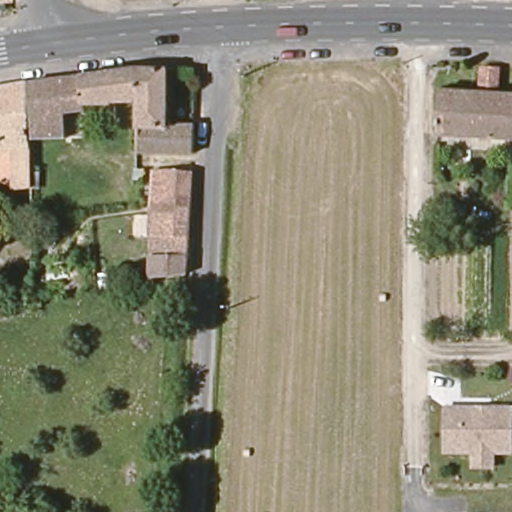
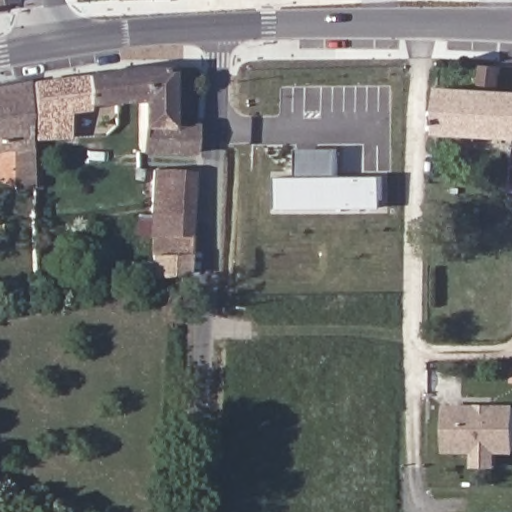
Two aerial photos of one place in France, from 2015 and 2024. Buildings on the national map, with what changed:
unchanged [(0,4),(0,0),(17,0),(17,1),(0,4)]
unchanged [(130,3),(130,0),(191,0),(191,1),(130,3)]
unchanged [(442,134),(444,91),(485,94),(486,66),(504,68),(503,94),(512,95),(512,138),(442,134)]
unchanged [(70,78),(101,74),(106,73),(145,69),(171,69),(173,69),(172,126),(199,128),(198,154),(146,154),(145,104),(118,104),(86,104),(86,111),(69,111),(70,139),(58,139),(51,139),(48,139),(38,139),(34,84),(70,78)]
unchanged [(18,150),(0,152),(0,90),(32,84),(33,149),(35,188),(20,189),(18,150)]
new [(341,177),(383,177),(383,209),(278,210),(277,178),(298,178),(298,149),(341,149),(341,177)]
unchanged [(159,170),(197,173),(196,204),(172,204),(169,204),(168,213),(156,214),(159,170)]
unchanged [(158,279),(157,256),(158,237),(155,237),(156,214),(168,213),(169,204),(172,204),(196,204),(194,254),(193,274),(158,279)]
unchanged [(63,269),(63,279),(41,283),(41,271),(63,269)]
unchanged [(446,451),(446,407),(479,409),(484,412),(490,413),(495,409),(512,409),(512,453),(497,453),(497,468),(475,467),(476,452),(446,451)]

